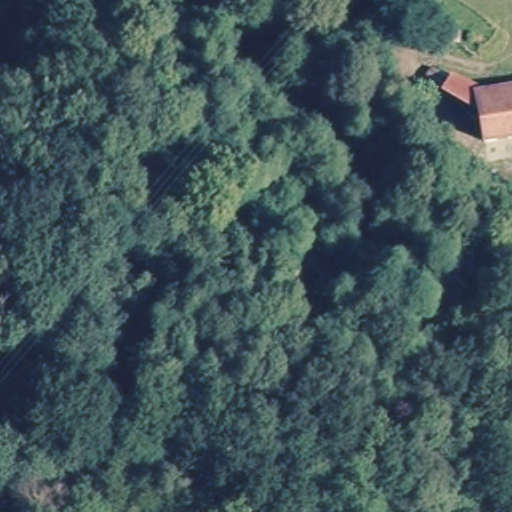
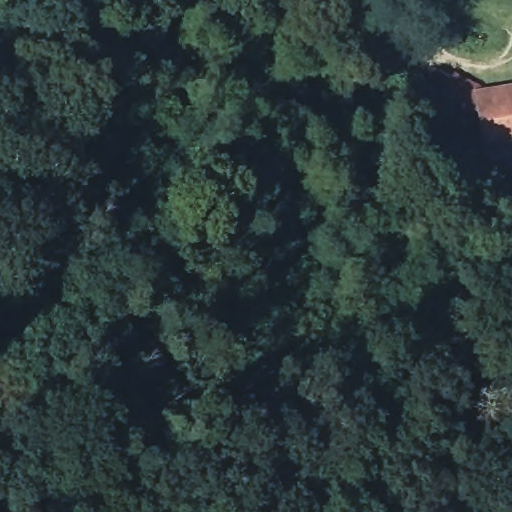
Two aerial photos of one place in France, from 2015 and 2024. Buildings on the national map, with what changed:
unchanged [(485,85),(488,117),(428,75),(437,64),(485,85)]
unchanged [(491,136),(488,117),(485,85),(512,83),(512,135),(491,136)]

